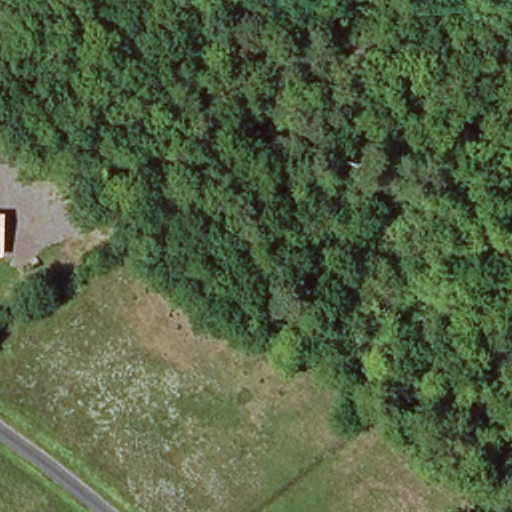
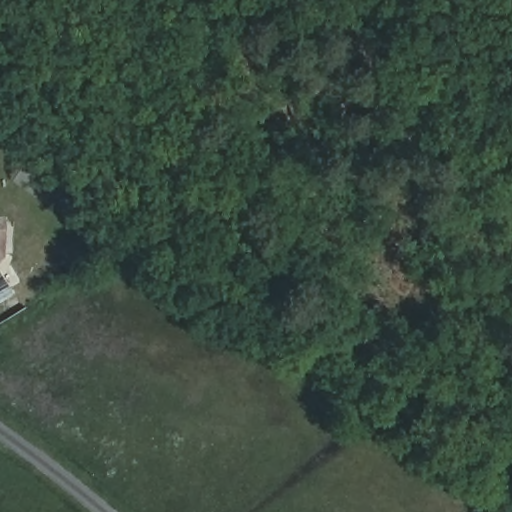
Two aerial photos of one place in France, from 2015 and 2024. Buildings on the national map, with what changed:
unchanged [(4,258),(0,258),(0,216),(7,216),(4,258)]

